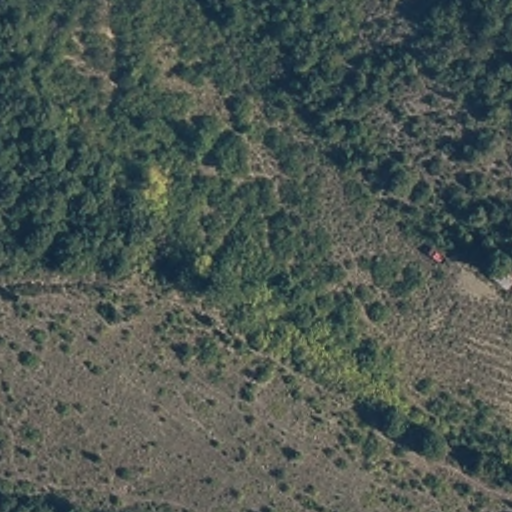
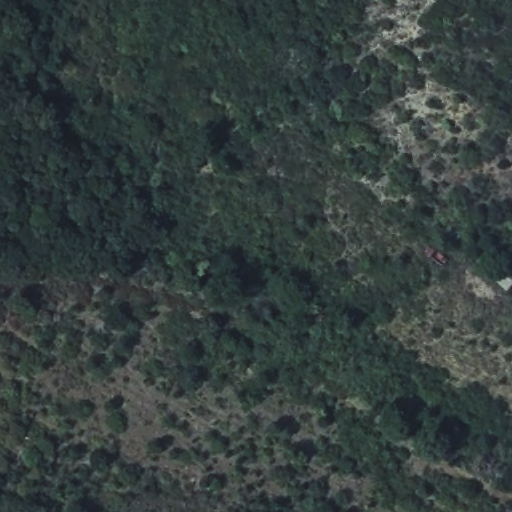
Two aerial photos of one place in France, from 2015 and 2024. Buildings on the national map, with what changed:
unchanged [(512,267),(512,282),(509,287),(491,275),(502,258),(512,267)]

